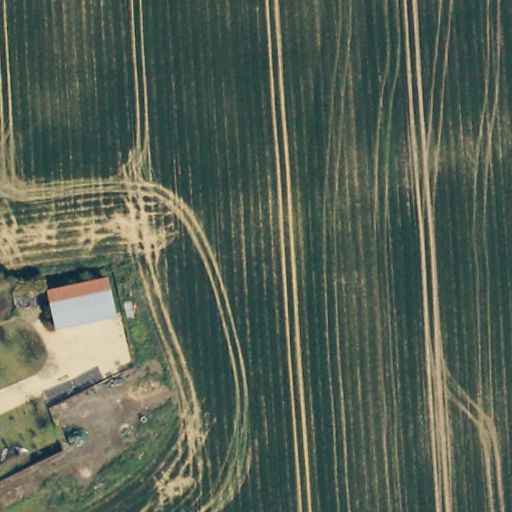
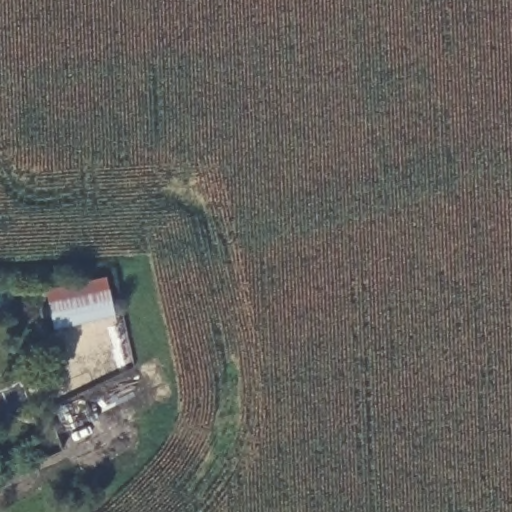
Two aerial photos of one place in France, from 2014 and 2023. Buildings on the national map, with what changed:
unchanged [(104,279),(111,309),(52,322),(46,292),(104,279)]

